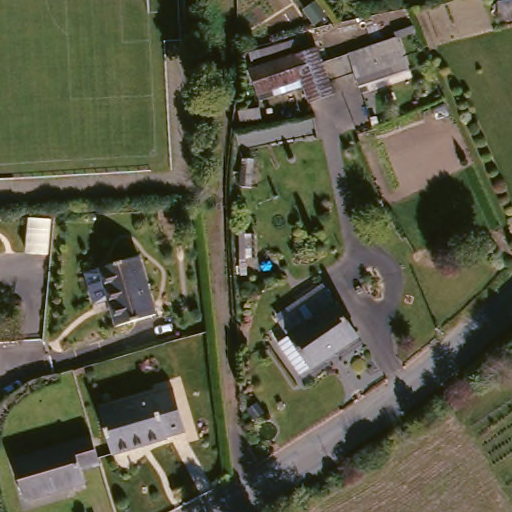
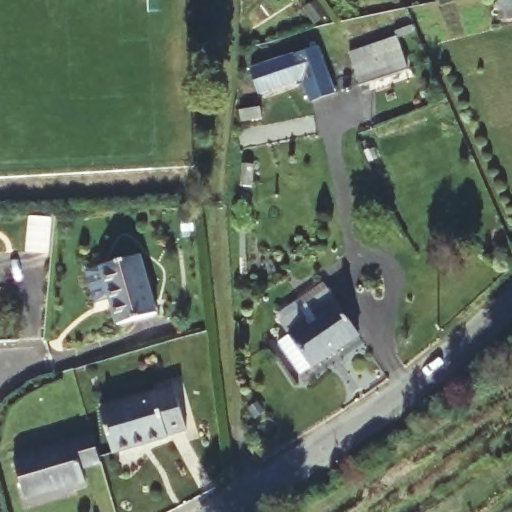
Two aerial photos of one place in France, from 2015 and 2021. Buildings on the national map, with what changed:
unchanged [(512,25),(496,27),(494,7),(512,5),(512,25)]
unchanged [(291,52),(314,44),(319,57),(252,80),(247,67),(291,52)]
unchanged [(408,69),(368,83),(369,88),(363,90),(354,66),(359,64),(356,53),(374,47),(378,57),(401,50),(408,69)]
unchanged [(319,57),(336,103),(311,112),(304,90),(260,104),(252,80),(319,57)]
unchanged [(135,262),(151,318),(114,330),(97,272),(135,262)]
unchanged [(291,341),(281,327),(328,295),(360,341),(313,372),(312,372),(301,380),(279,347),(291,341)]
unchanged [(170,393),(183,436),(163,441),(163,442),(109,458),(96,415),(170,393)]
unchanged [(101,462),(82,468),(86,482),(27,499),(14,459),(94,436),(101,462)]

